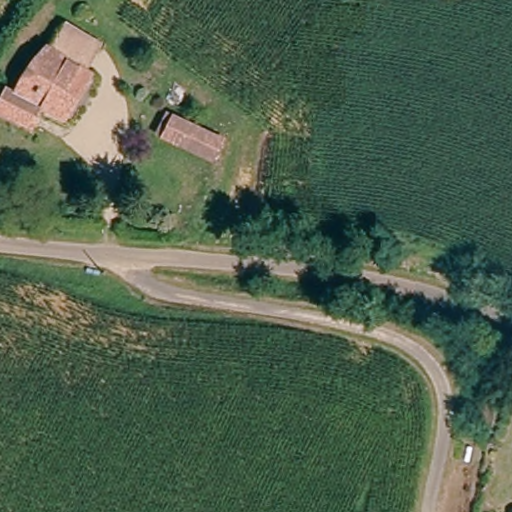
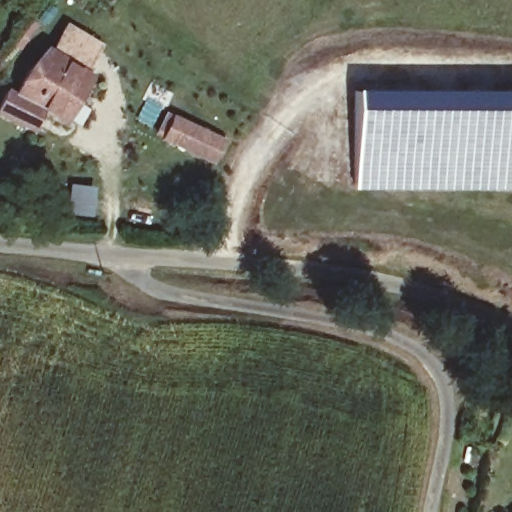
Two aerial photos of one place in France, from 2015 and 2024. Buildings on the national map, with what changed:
unchanged [(53,35),(66,11),(103,37),(73,89),(26,57),(46,33),(53,35)]
unchanged [(15,82),(26,57),(73,89),(60,115),(36,102),(24,123),(0,108),(0,92),(7,79),(15,82)]
new [(355,190),(353,90),(512,90),(512,189),(355,190)]
unchanged [(160,127),(170,104),(224,135),(213,159),(160,127)]

